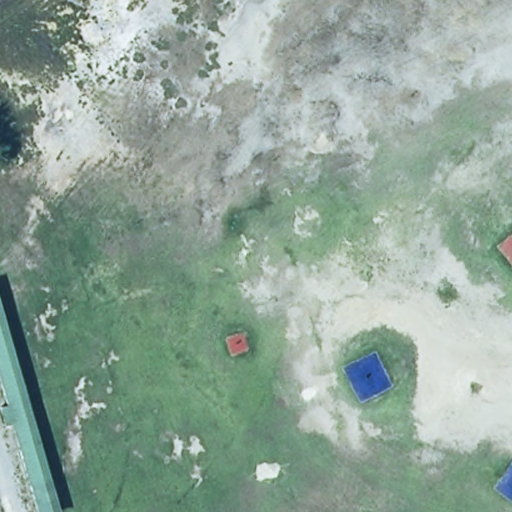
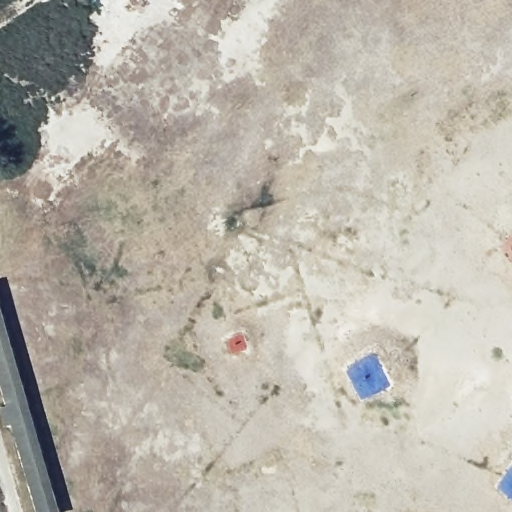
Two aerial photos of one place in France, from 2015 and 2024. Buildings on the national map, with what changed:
unchanged [(29,512),(5,431),(0,433),(0,317),(57,512),(29,512)]

